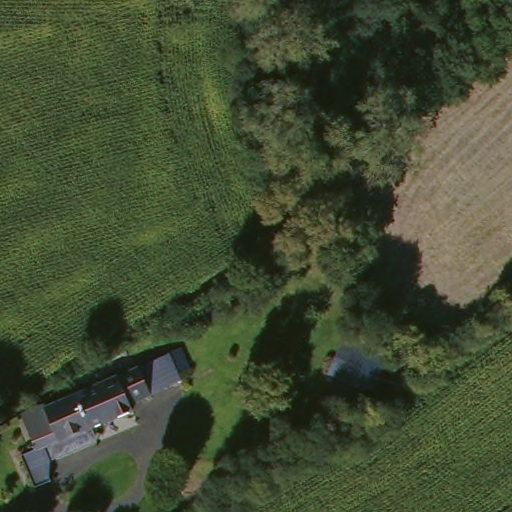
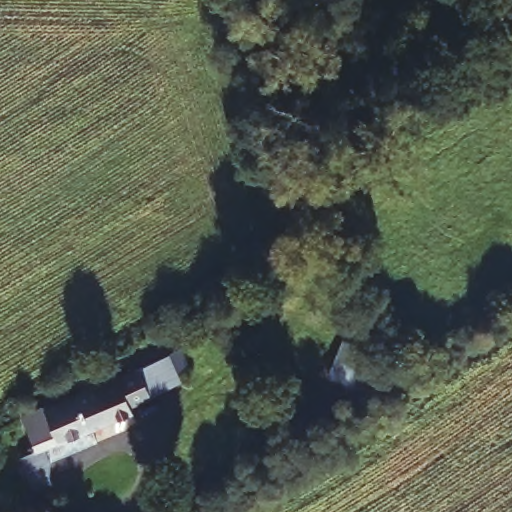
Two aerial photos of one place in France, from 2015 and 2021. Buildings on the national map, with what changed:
unchanged [(160,356),(172,381),(152,391),(129,402),(132,410),(112,420),(99,388),(142,365),(160,356)]
unchanged [(99,388),(112,420),(102,425),(57,447),(46,452),(32,423),(75,400),(76,401),(99,388)]
unchanged [(62,492),(50,499),(30,464),(42,457),(62,492)]

